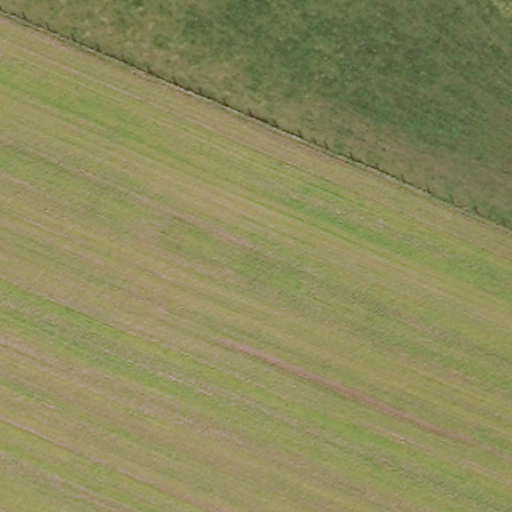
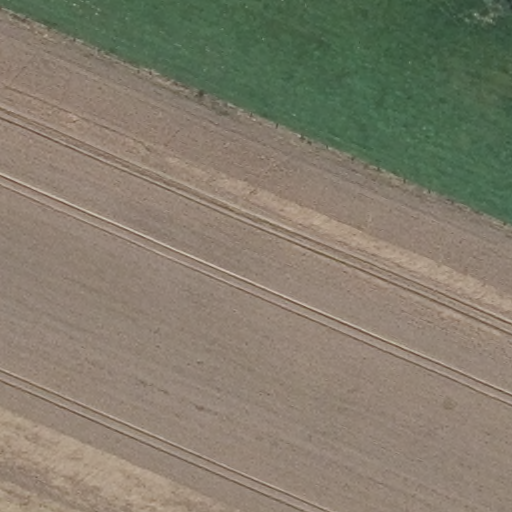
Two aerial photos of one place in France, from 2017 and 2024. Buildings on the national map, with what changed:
[]

